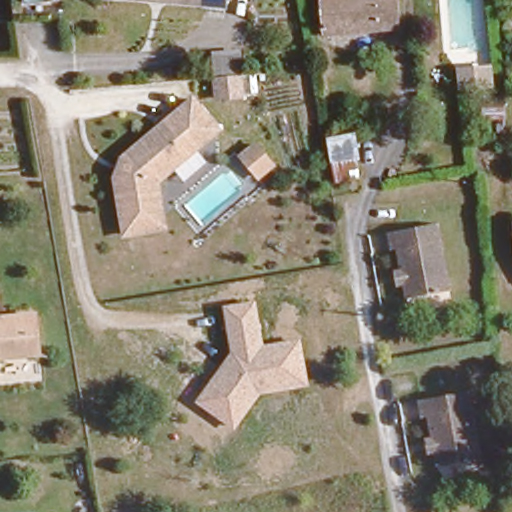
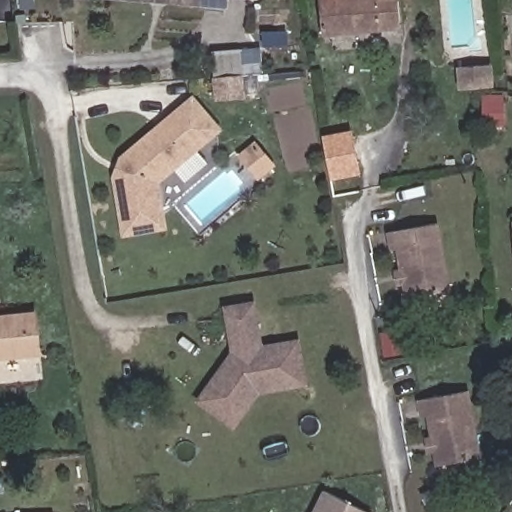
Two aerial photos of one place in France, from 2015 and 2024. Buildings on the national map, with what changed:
unchanged [(128,0),(220,0),(219,9),(128,0)]
unchanged [(399,25),(335,30),(322,32),(320,0),(398,0),(399,24),(399,25)]
unchanged [(244,50),(247,100),(216,103),(212,51),(244,50)]
unchanged [(220,136),(157,190),(164,232),(117,241),(110,169),(192,105),(220,136)]
demolished [(327,129),(333,129),(335,135),(352,131),(356,155),(331,161),(327,129)]
new [(322,135),(353,130),(360,175),(329,181),(322,135)]
unchanged [(258,182),(238,156),(255,142),(276,166),(258,182)]
unchanged [(436,220),(449,286),(407,295),(397,245),(391,247),(387,230),(436,220)]
unchanged [(506,260),(505,220),(512,220),(512,260),(506,260)]
unchanged [(310,386),(260,395),(233,430),(194,403),(230,354),(223,306),(256,301),(264,345),(301,340),(310,386)]
unchanged [(38,345),(0,350),(0,310),(31,305),(38,345)]
unchanged [(470,381),(483,448),(440,457),(430,407),(424,408),(421,391),(470,381)]
new [(323,489),(368,512),(311,512),(323,489)]
unchanged [(50,511),(51,512),(47,512),(50,511)]

